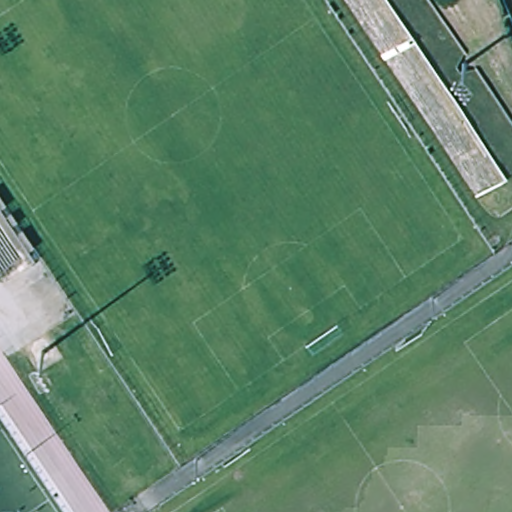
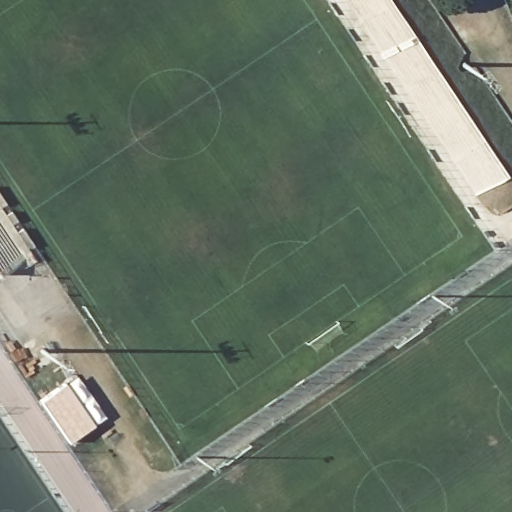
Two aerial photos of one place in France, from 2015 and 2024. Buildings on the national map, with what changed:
unchanged [(342,0),(388,0),(508,181),(477,202),(342,0)]
unchanged [(0,271),(0,222),(23,256),(0,271)]
new [(64,381),(94,423),(68,441),(40,400),(64,381)]

